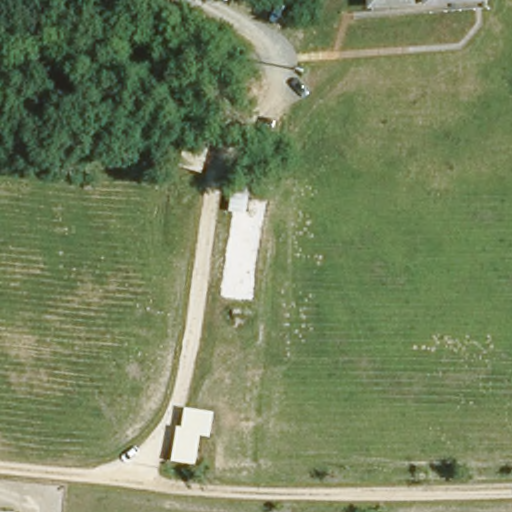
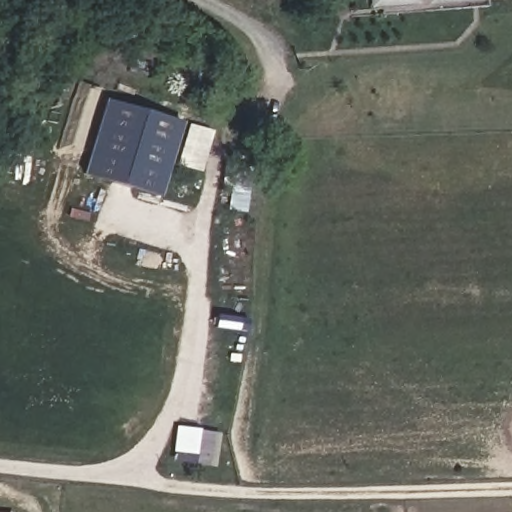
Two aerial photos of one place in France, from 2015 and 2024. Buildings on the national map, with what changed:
unchanged [(487,2),(364,7),(364,0),(487,0),(487,2)]
new [(182,121),(160,197),(86,178),(106,101),(182,121)]
new [(200,172),(177,166),(189,125),(211,131),(200,172)]
new [(217,433),(212,467),(171,462),(176,427),(217,433)]

